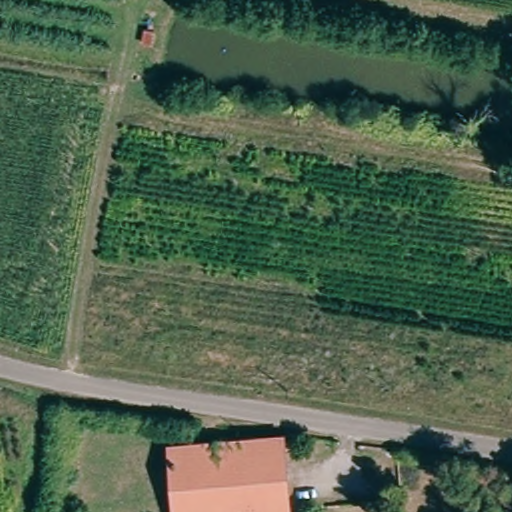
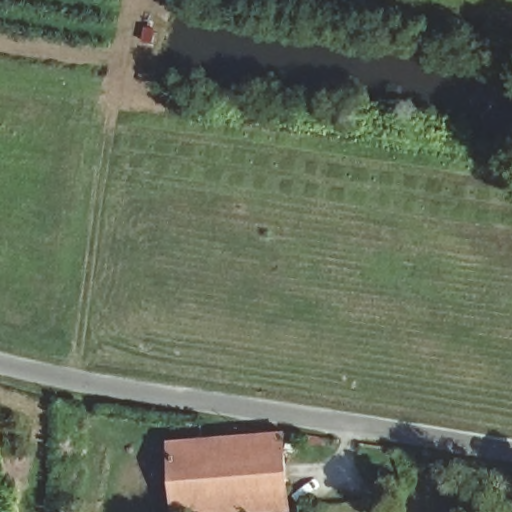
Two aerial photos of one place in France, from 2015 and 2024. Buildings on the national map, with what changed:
unchanged [(286,511),(270,512),(173,512),(170,442),(283,437),(286,511)]

